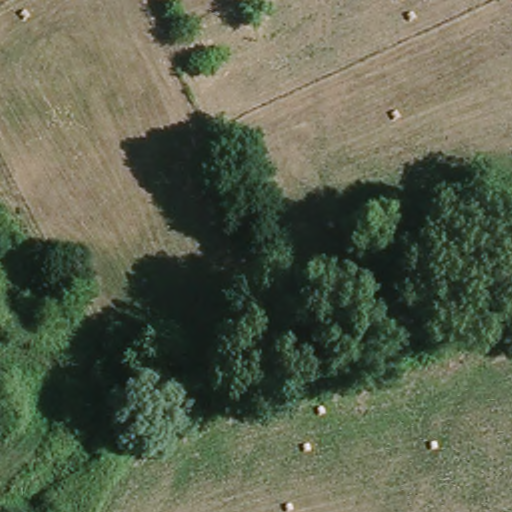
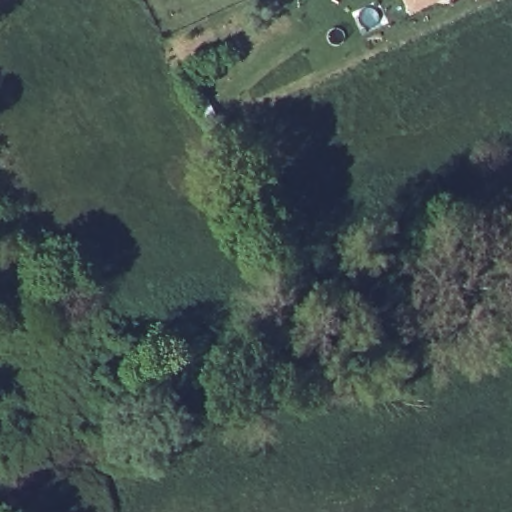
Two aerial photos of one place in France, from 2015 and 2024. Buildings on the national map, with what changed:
new [(405,0),(437,0),(410,12),(405,0)]

